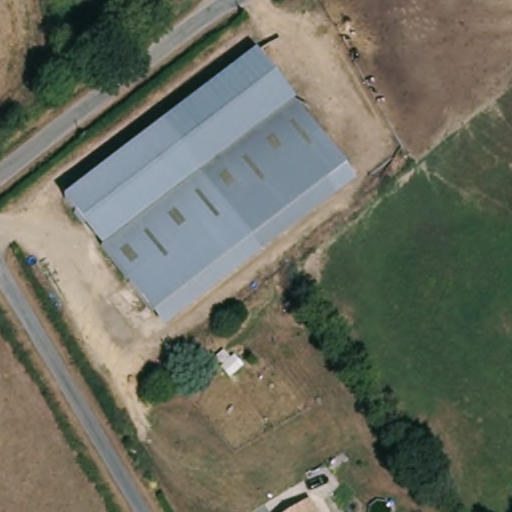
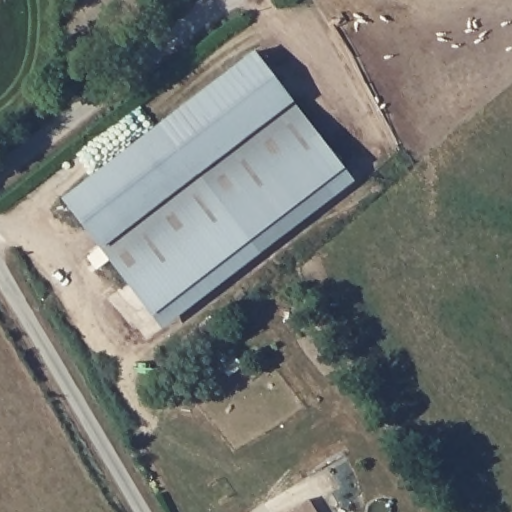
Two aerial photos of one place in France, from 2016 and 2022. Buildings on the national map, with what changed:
unchanged [(199,112),(269,61),(356,178),(281,234),(161,320),(74,204),(199,112)]
unchanged [(320,512),(287,512),(311,497),(320,512)]

